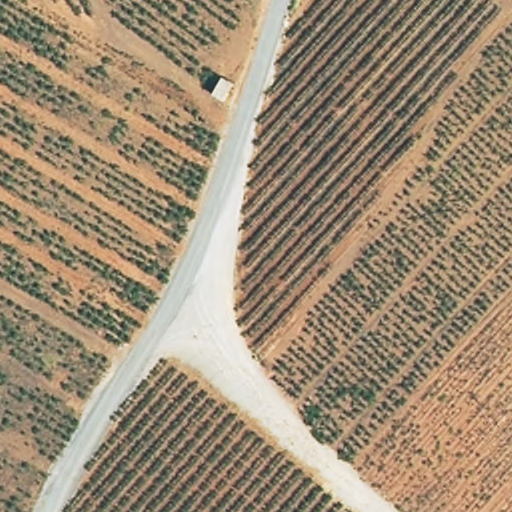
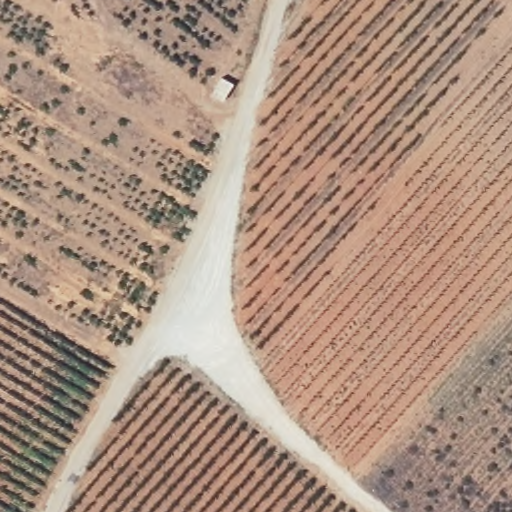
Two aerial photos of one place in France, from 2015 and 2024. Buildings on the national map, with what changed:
unchanged [(218,74),(235,82),(227,102),(210,94),(218,74)]

